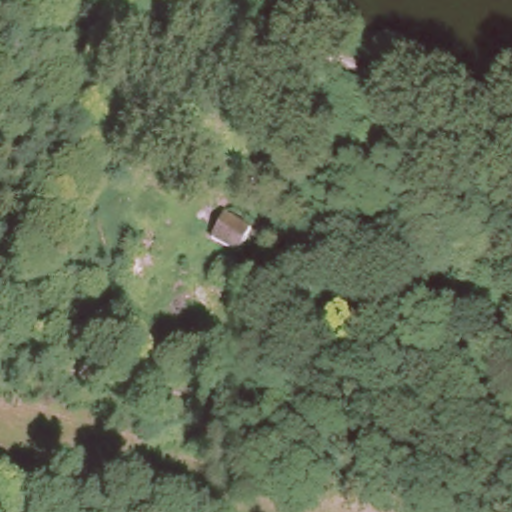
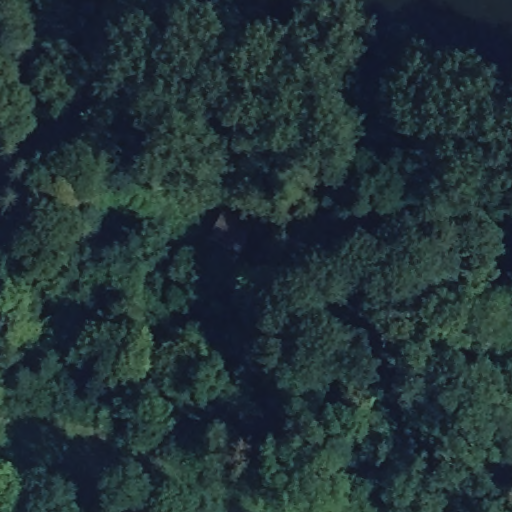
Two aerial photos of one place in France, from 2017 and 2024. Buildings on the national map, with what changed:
unchanged [(218,210),(245,222),(234,247),(207,236),(218,210)]

